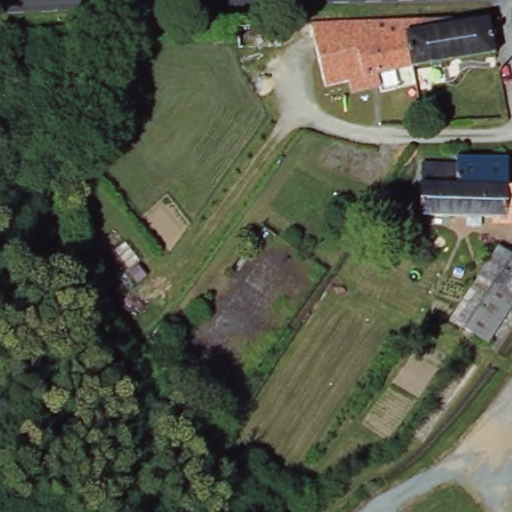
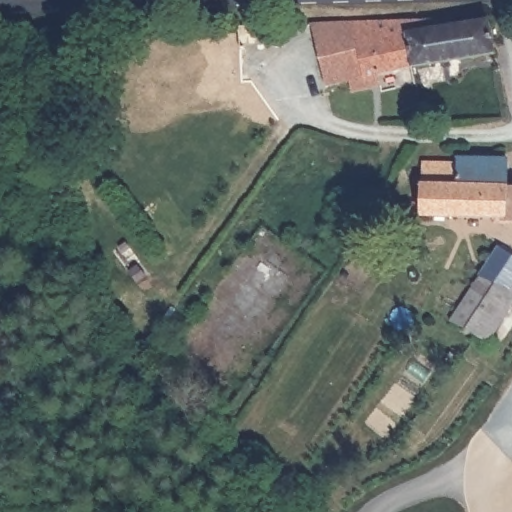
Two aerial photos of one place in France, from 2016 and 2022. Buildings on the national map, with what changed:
unchanged [(376,79),(379,90),(363,94),(350,96),(347,85),(324,91),(306,22),(417,21),(447,19),(449,26),(481,20),(487,52),(406,67),(408,71),(376,79)]
unchanged [(292,23),(291,33),(277,33),(276,45),(236,44),(236,40),(235,24),(292,23)]
unchanged [(460,185),(460,166),(460,159),(509,161),(508,186),(460,185)]
unchanged [(507,225),(507,218),(426,215),(426,201),(427,164),(460,166),(460,185),(508,186),(512,186),(512,225),(507,225)]
unchanged [(466,335),(448,327),(498,254),(512,262),(512,287),(508,292),(512,295),(512,306),(488,341),(484,348),(475,342),(466,335)]

